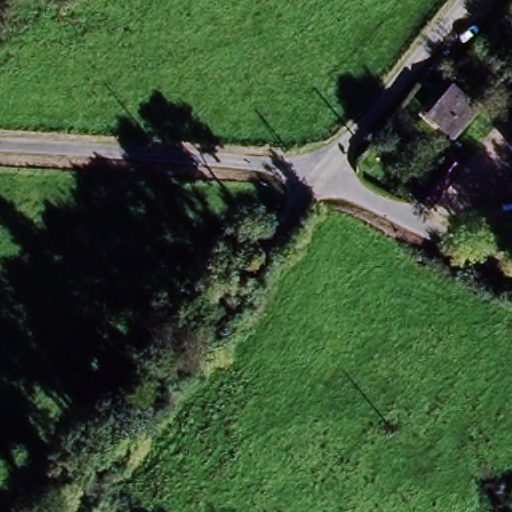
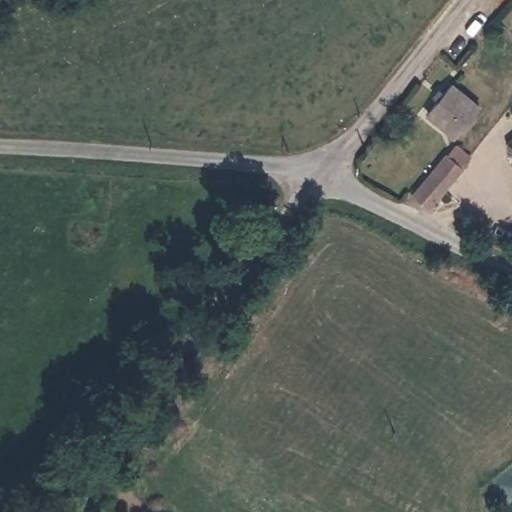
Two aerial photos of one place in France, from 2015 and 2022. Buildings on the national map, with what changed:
unchanged [(454,83),(481,105),(454,137),(428,115),(454,83)]
unchanged [(512,142),(512,152),(507,146),(512,142)]
unchanged [(449,155),(459,144),(474,156),(464,167),(444,192),(429,180),(449,155)]

